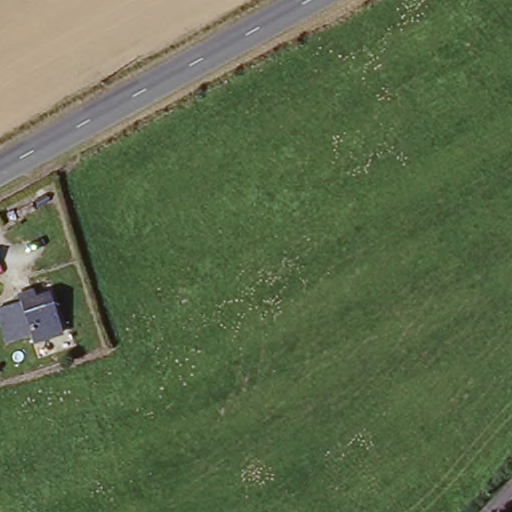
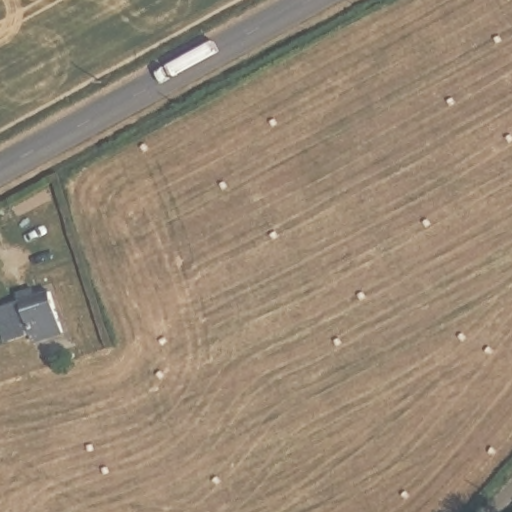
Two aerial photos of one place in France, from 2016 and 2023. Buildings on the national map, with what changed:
unchanged [(64,340),(32,348),(30,340),(4,346),(0,330),(0,309),(53,290),(64,340)]

